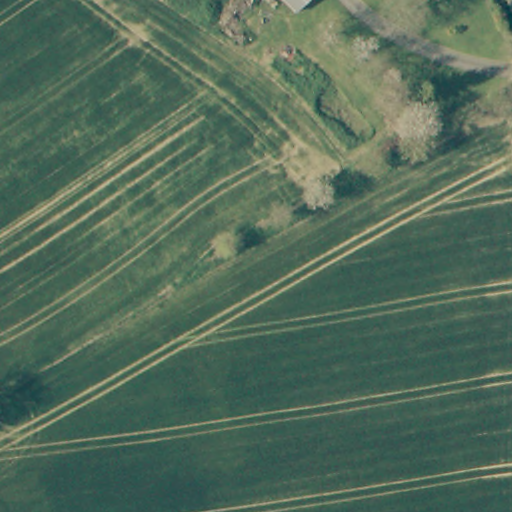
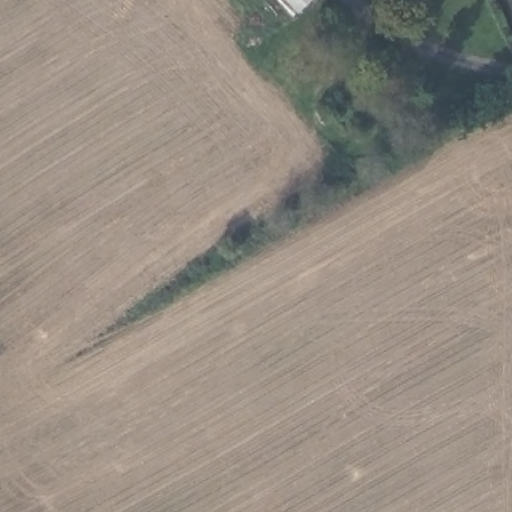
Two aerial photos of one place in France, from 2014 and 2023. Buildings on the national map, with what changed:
unchanged [(311,0),(298,12),(285,0),(311,0)]

